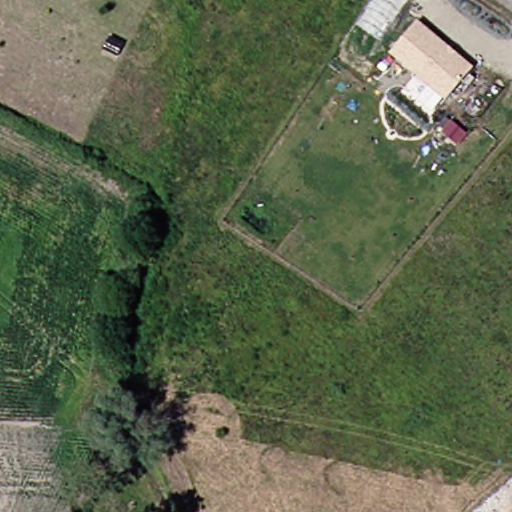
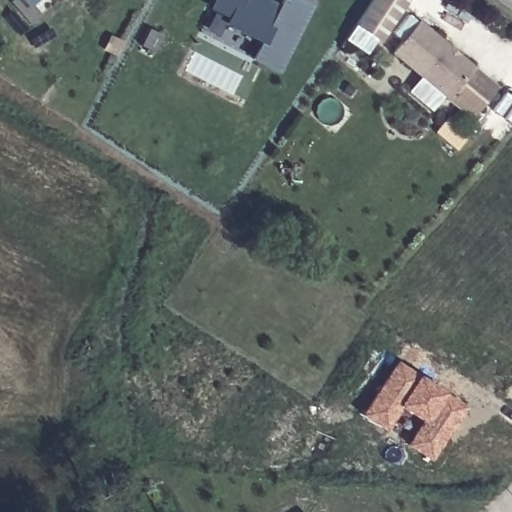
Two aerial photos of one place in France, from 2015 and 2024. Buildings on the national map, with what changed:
new [(278,0),(304,0),(315,5),(279,73),(248,56),(256,44),(222,23),(223,21),(206,11),(211,0),(265,0),(275,5),(278,0)]
new [(356,24),(373,0),(408,0),(378,41),(356,24)]
unchanged [(475,68),(445,101),(388,53),(418,20),(475,68)]
new [(431,463),(405,445),(420,421),(401,408),(387,431),(360,415),(395,360),(467,405),(431,463)]

